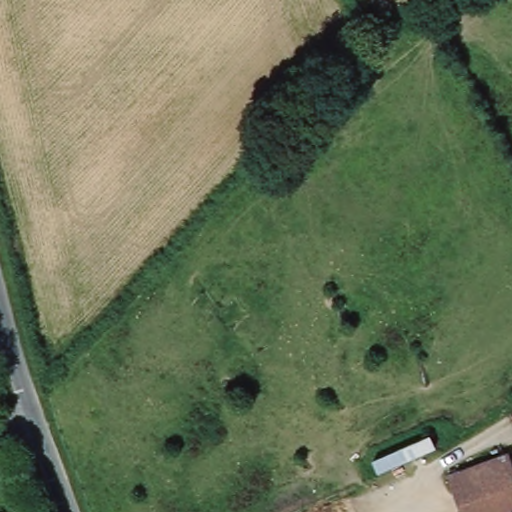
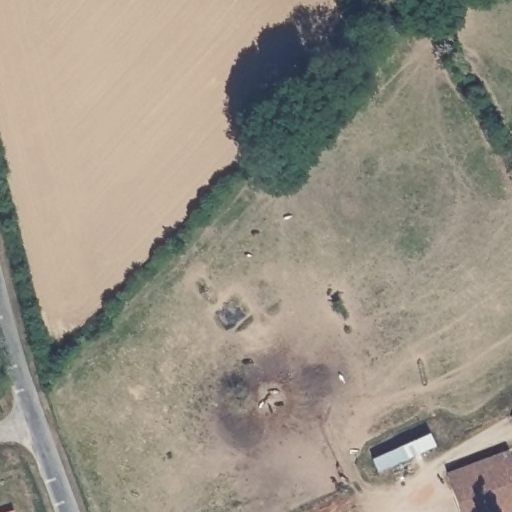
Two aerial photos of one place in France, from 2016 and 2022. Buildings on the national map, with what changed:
unchanged [(512,512),(466,512),(458,492),(457,489),(452,474),(455,472),(512,450),(512,512)]
unchanged [(20,512),(14,512),(20,510),(20,512)]

